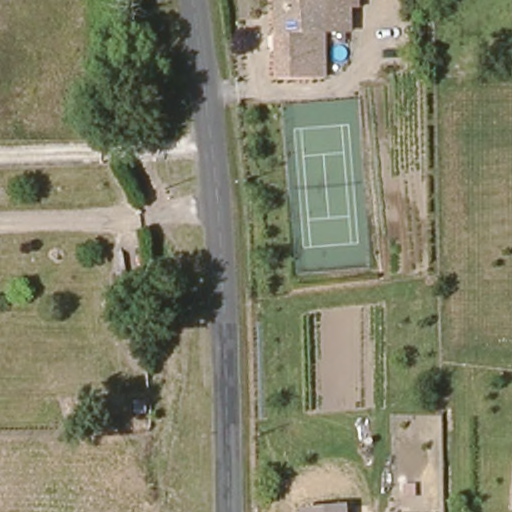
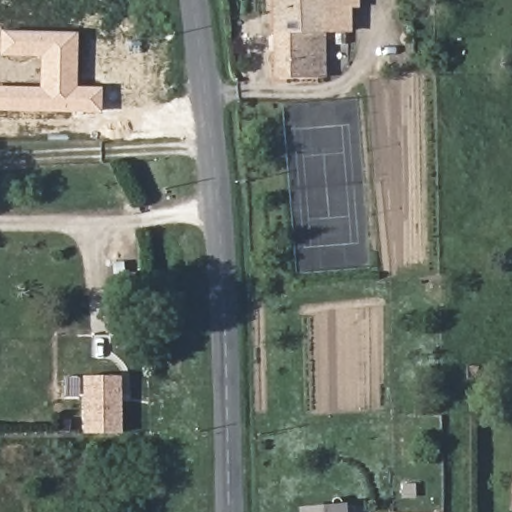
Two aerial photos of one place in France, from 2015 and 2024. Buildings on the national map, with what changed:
unchanged [(353,11),(346,11),(346,37),(321,37),(322,83),(275,84),(274,0),(353,0),(353,11)]
new [(0,111),(0,86),(41,87),(42,56),(1,55),(2,30),(77,32),(76,88),(102,88),(101,113),(0,111)]
new [(84,432),(83,376),(121,375),(122,432),(84,432)]
unchanged [(510,507),(512,491),(512,508),(510,507)]
unchanged [(338,506),(339,512),(299,512),(298,511),(338,506)]

